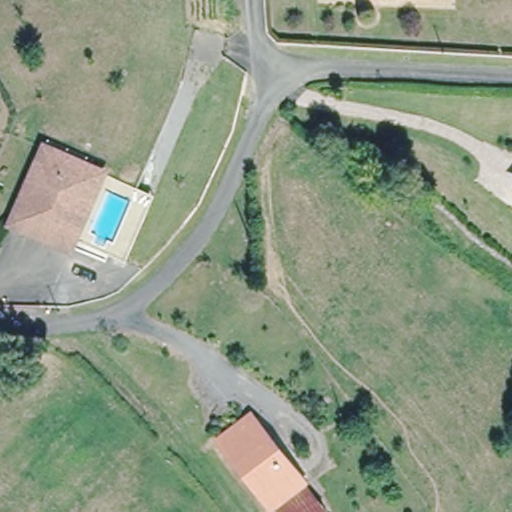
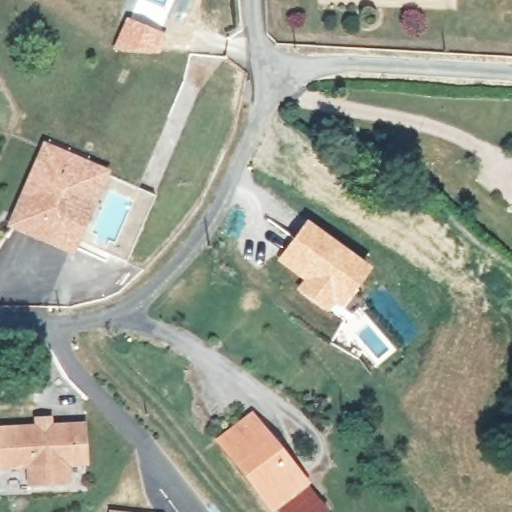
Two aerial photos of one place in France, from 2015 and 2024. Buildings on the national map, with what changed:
unchanged [(59,223),(79,232),(70,252),(10,225),(43,148),(84,166),(59,223)]
unchanged [(59,223),(84,166),(104,174),(79,232),(59,223)]
new [(306,219),(372,267),(340,310),(334,306),(330,312),(295,289),(302,280),(276,261),(306,219)]
unchanged [(248,412),(308,486),(275,512),(216,439),(248,412)]
new [(43,427),(61,426),(79,424),(82,450),(83,462),(64,464),(66,482),(28,486),(26,467),(0,470),(0,432),(36,428),(43,427)]
unchanged [(308,486),(329,511),(328,512),(275,512),(308,486)]

